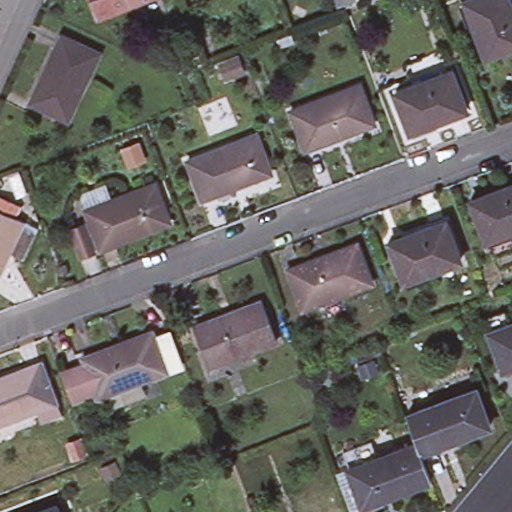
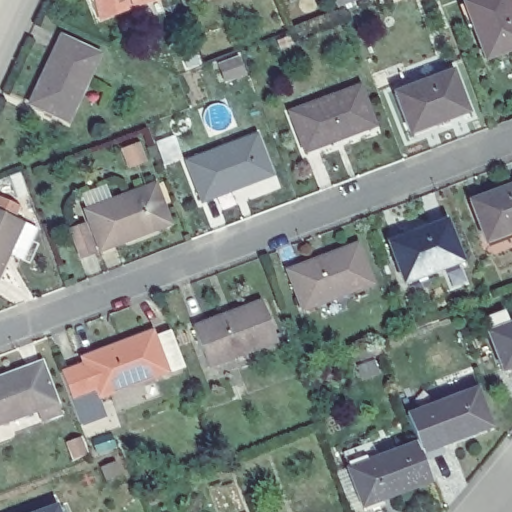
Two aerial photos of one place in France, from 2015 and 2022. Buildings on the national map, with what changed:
unchanged [(131,0),(115,6),(115,4),(97,11),(93,0),(131,0)]
unchanged [(466,0),(512,0),(512,41),(486,51),(466,0)]
unchanged [(34,106),(63,41),(100,57),(72,123),(34,106)]
unchanged [(405,125),(392,86),(447,66),(462,104),(405,125)]
unchanged [(307,149),(292,111),(360,85),(375,123),(307,149)]
unchanged [(203,203),(189,163),(257,138),(272,178),(203,203)]
unchanged [(108,247),(93,208),(160,182),(175,221),(108,247)]
unchanged [(470,199),(512,183),(512,228),(485,238),(470,199)]
unchanged [(0,267),(0,203),(25,216),(0,267)]
unchanged [(405,275),(390,236),(446,215),(460,254),(405,275)]
unchanged [(87,254),(77,228),(90,223),(100,249),(87,254)]
unchanged [(305,306),(291,267),(357,242),(372,281),(305,306)]
unchanged [(210,364),(195,326),(263,301),(277,340),(210,364)]
unchanged [(485,317),(507,309),(512,321),(512,366),(504,369),(491,332),(485,317)]
unchanged [(157,324),(175,365),(70,399),(59,364),(79,358),(78,351),(157,324)]
unchanged [(38,361),(53,400),(0,420),(0,375),(38,361)]
unchanged [(419,436),(408,407),(478,382),(492,420),(422,444),(419,436)]
unchanged [(364,499),(350,463),(419,436),(422,444),(432,473),(364,499)]
unchanged [(60,503),(63,512),(33,512),(60,503)]

